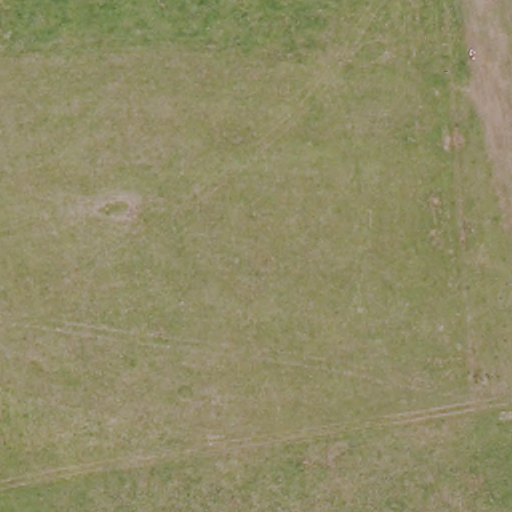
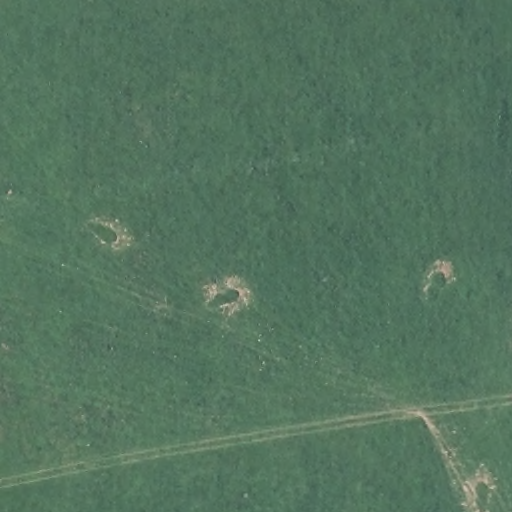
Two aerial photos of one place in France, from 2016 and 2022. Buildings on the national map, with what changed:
[]

